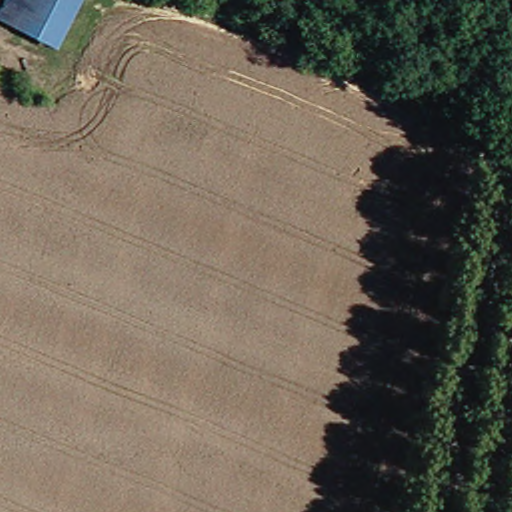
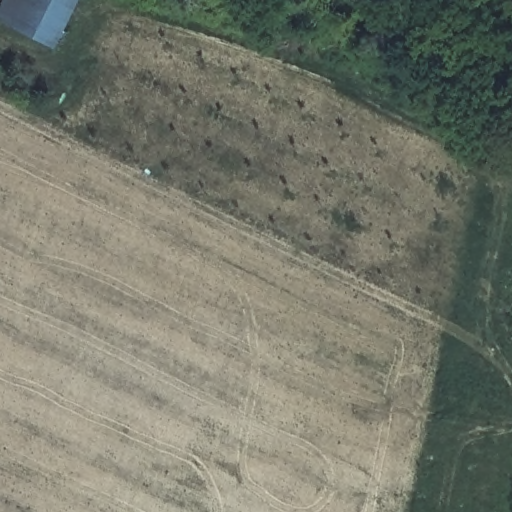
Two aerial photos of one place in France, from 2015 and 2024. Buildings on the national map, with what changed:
unchanged [(6,19),(15,0),(87,0),(65,46),(6,19)]

